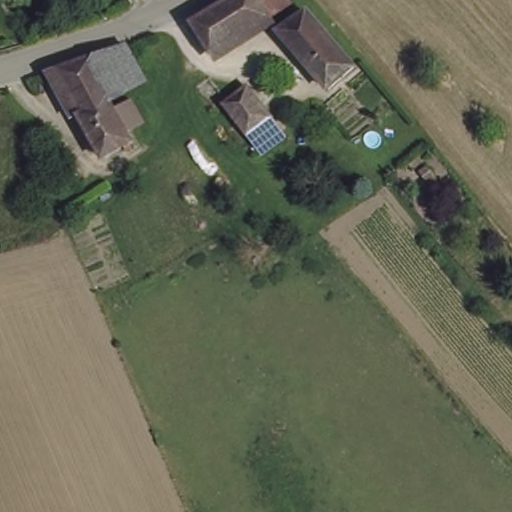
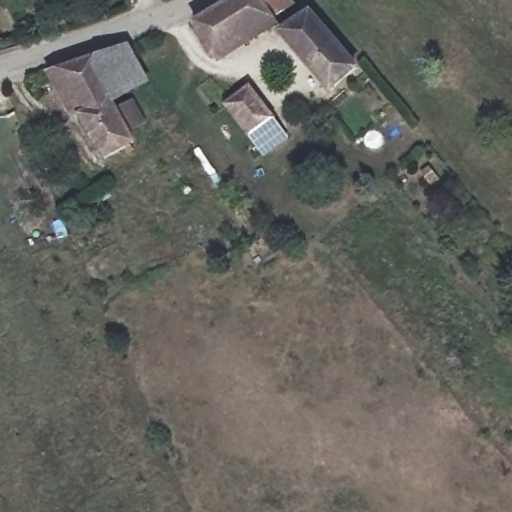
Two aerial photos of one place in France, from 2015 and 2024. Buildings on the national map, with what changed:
unchanged [(193,26),(231,0),(288,0),(294,7),(275,21),(279,26),(227,63),(193,26)]
unchanged [(312,16),(359,71),(332,93),(284,40),(312,16)]
unchanged [(87,57),(129,42),(154,81),(117,106),(87,57)]
unchanged [(117,106),(140,142),(109,162),(47,71),(87,57),(117,106)]
unchanged [(236,119),(230,111),(255,91),(289,134),(265,154),(236,119)]

